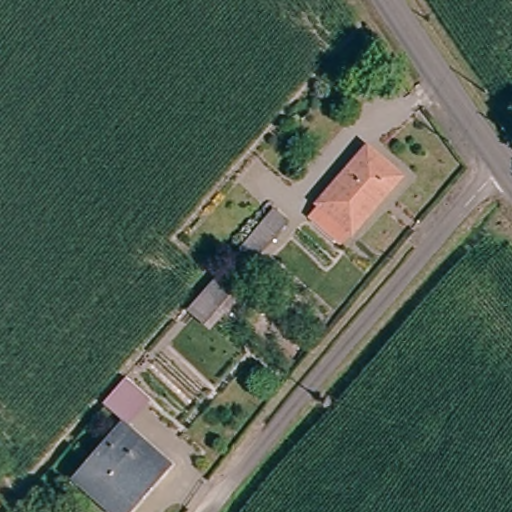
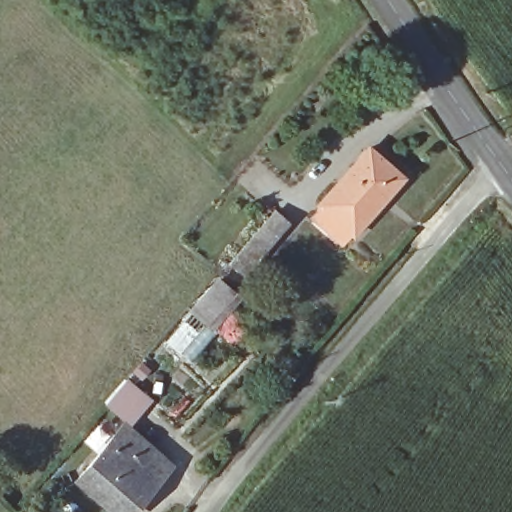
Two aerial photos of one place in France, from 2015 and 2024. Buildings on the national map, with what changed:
unchanged [(397,181),(347,237),(314,208),(363,152),(397,181)]
unchanged [(286,221),(255,257),(243,271),(231,261),(243,248),(274,211),(286,221)]
unchanged [(236,296),(210,325),(192,309),(218,280),(236,296)]
unchanged [(147,403),(127,425),(106,407),(126,384),(147,403)]
unchanged [(132,512),(107,512),(74,484),(123,429),(169,470),(132,512)]

